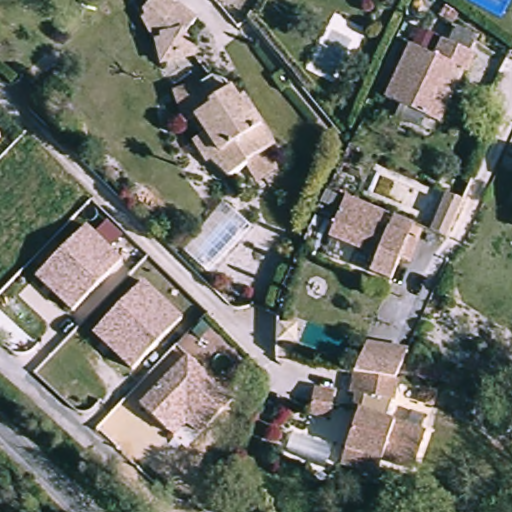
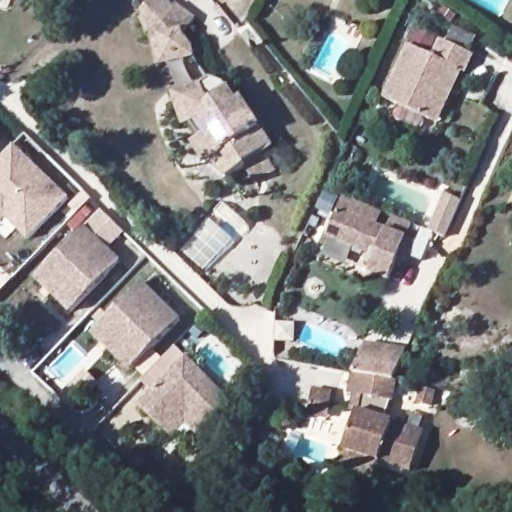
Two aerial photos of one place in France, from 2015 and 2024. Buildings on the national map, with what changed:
new [(12,0),(9,10),(0,8),(0,0),(12,0)]
unchanged [(147,0),(176,0),(170,16),(174,30),(187,25),(192,41),(159,53),(146,17),(147,0)]
unchanged [(385,0),(391,0),(390,3),(385,0)]
unchanged [(437,124),(426,119),(380,98),(404,47),(426,57),(435,40),(468,57),(460,74),(450,69),(443,83),(435,79),(427,98),(435,101),(446,105),(437,124)]
unchanged [(215,84),(231,109),(241,103),(275,148),(234,183),(215,160),(202,169),(185,146),(198,135),(185,118),(169,124),(158,96),(187,83),(194,79),(215,84)]
unchanged [(1,138),(0,138),(0,137),(1,138)]
new [(14,150),(70,203),(31,245),(8,223),(0,232),(0,165),(14,150)]
unchanged [(441,191),(457,197),(440,234),(424,228),(441,191)]
unchanged [(343,215),(418,247),(410,269),(400,266),(391,287),(373,279),(379,264),(331,243),(343,215)]
unchanged [(41,271),(83,226),(121,262),(73,314),(46,289),(35,278),(41,271)]
unchanged [(101,332),(143,287),(182,323),(133,374),(107,351),(95,339),(101,332)]
unchanged [(400,378),(349,371),(353,346),(417,347),(402,379),(400,378)]
unchanged [(139,404),(185,356),(230,399),(205,426),(198,433),(185,421),(171,436),(164,429),(139,404)]
unchanged [(352,478),(355,461),(363,402),(346,399),(349,371),(400,378),(393,426),(433,432),(428,471),(390,466),(389,483),(352,478)]
new [(292,387),(312,390),(309,420),(289,417),(292,387)]
unchanged [(339,392),(334,423),(312,421),(319,387),(339,392)]

